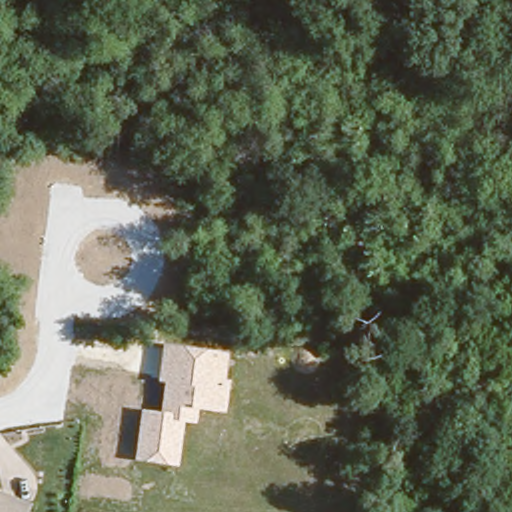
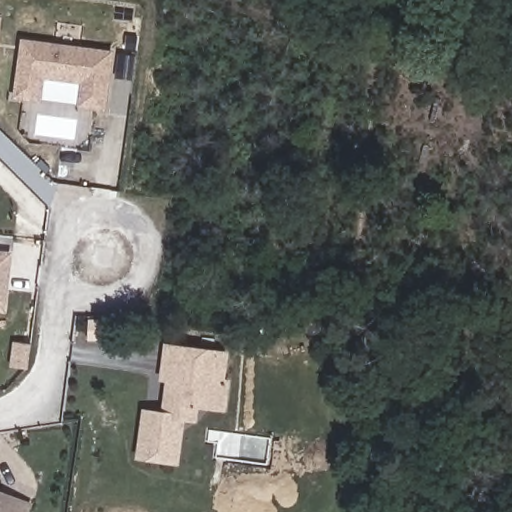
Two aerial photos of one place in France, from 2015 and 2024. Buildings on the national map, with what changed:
new [(102,114),(78,110),(81,86),(41,81),(38,105),(13,100),(21,45),(110,57),(102,114)]
new [(0,250),(13,251),(6,314),(0,313),(0,250)]
unchanged [(226,377),(234,378),(229,412),(200,407),(198,425),(186,423),(181,465),(135,459),(141,408),(162,410),(166,383),(160,382),(167,344),(230,353),(226,377)]
unchanged [(31,512),(0,512),(0,489),(35,502),(31,512)]

